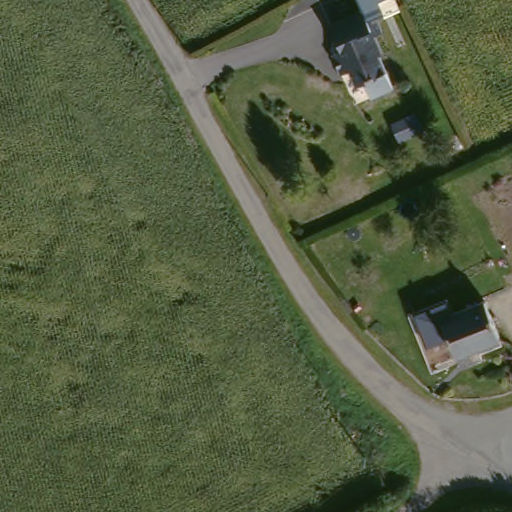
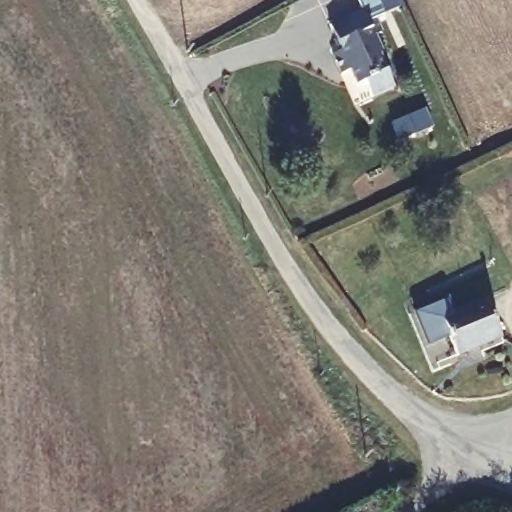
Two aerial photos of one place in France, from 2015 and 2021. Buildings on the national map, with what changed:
unchanged [(373,21),(367,23),(362,13),(357,0),(377,0),(383,14),(373,21)]
unchanged [(391,91),(369,101),(362,85),(355,88),(349,73),(340,76),(331,57),(341,53),(329,27),(362,13),(367,23),(373,21),(380,36),(373,39),(381,57),(377,59),(391,91)]
unchanged [(436,326),(483,306),(499,345),(452,365),(436,326)]

